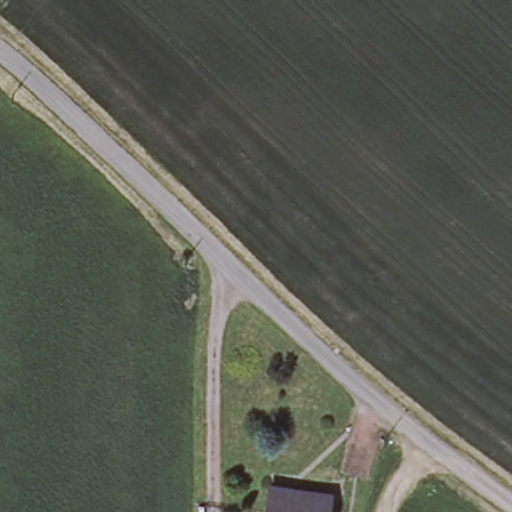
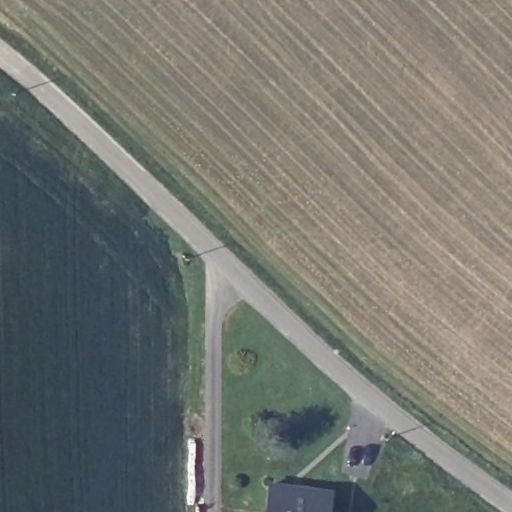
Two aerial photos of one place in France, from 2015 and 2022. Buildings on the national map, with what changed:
unchanged [(295,487),(295,493),(332,498),(331,512),(268,512),(270,483),(295,487)]

